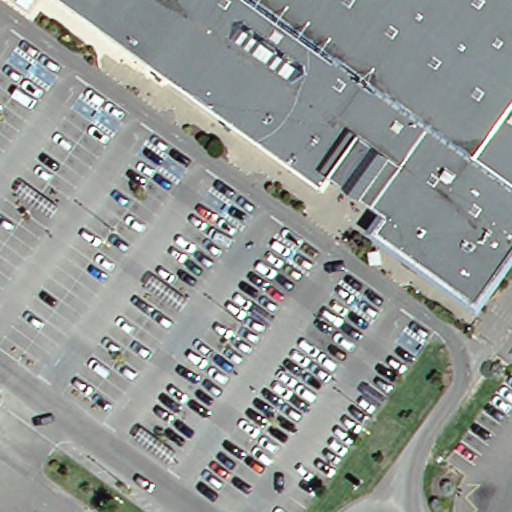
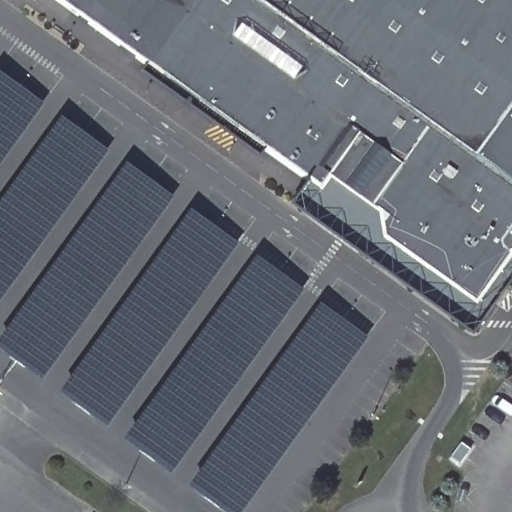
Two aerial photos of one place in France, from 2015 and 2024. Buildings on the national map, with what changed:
unchanged [(487,282),(444,290),(377,242),(376,192),(382,182),(346,157),(322,190),(58,0),(512,0),(512,251),(487,282)]
new [(0,71),(45,104),(0,166),(0,71)]
new [(0,203),(63,116),(110,151),(0,302),(0,203)]
new [(322,190),(346,157),(382,182),(376,192),(377,242),(444,290),(487,282),(512,251),(512,278),(472,332),(292,201),(308,180),(322,190)]
new [(176,197),(44,379),(0,347),(0,340),(128,162),(176,197)]
new [(192,209),(240,243),(109,426),(61,392),(192,209)]
new [(258,255),(306,290),(173,472),(126,438),(258,255)]
new [(243,512),(228,512),(190,485),(322,302),(369,337),(243,512)]

